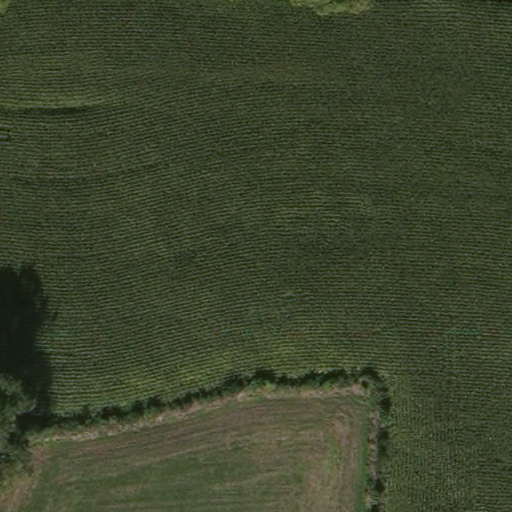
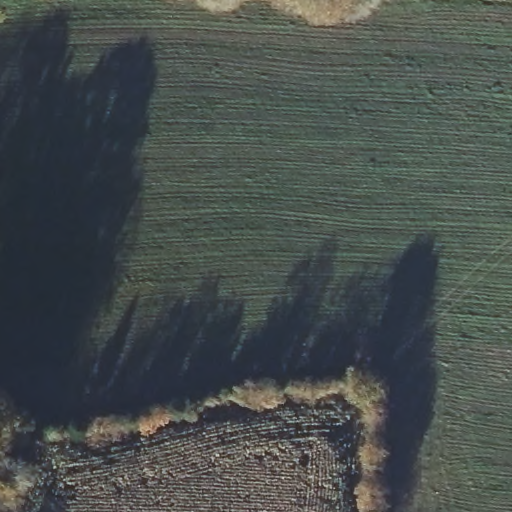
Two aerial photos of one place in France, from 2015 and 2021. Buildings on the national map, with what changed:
[]

